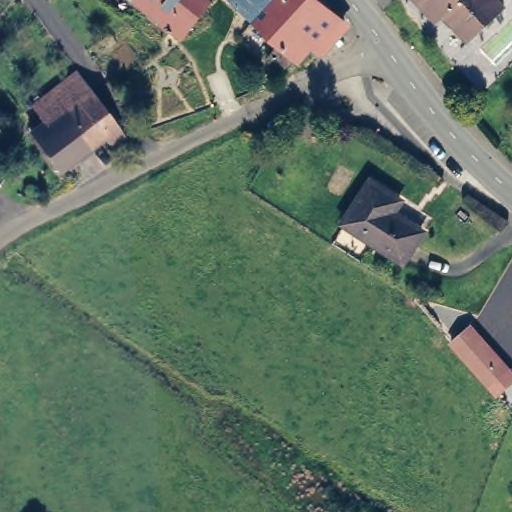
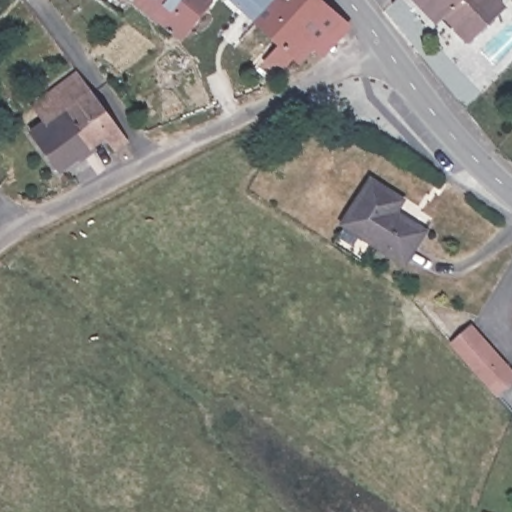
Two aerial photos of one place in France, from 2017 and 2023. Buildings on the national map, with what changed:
unchanged [(137,1),(136,0),(199,0),(209,9),(179,42),(135,4),(137,1)]
unchanged [(306,65),(301,61),(289,74),(274,61),(287,49),(242,8),(234,1),(235,0),(322,0),(347,23),(306,65)]
unchanged [(460,44),(423,0),(486,0),(497,13),(460,44)]
unchanged [(117,146),(106,151),(101,143),(47,169),(25,124),(46,114),(37,94),(86,69),(96,94),(117,146)]
unchanged [(365,178),(395,198),(387,210),(416,229),(397,260),(359,234),(362,229),(342,215),(365,178)]
unchanged [(496,396),(449,344),(471,322),(512,370),(512,382),(496,396)]

